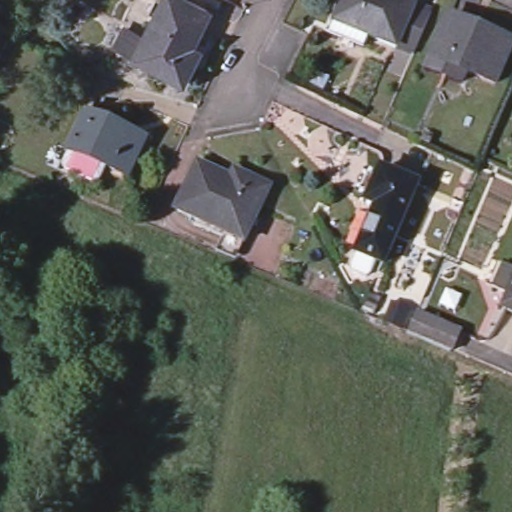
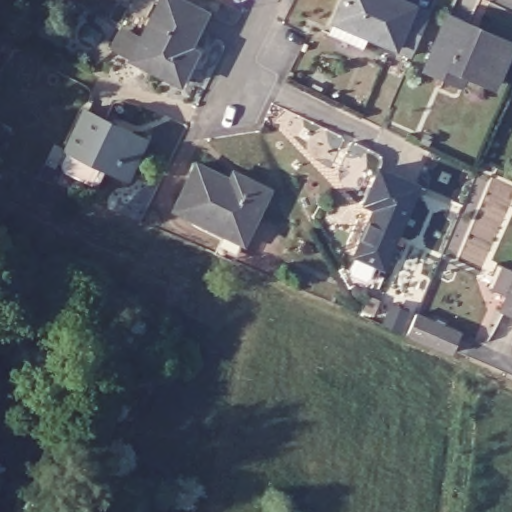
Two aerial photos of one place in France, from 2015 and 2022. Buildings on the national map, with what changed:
unchanged [(177,79),(126,55),(152,0),(186,0),(201,7),(186,41),(193,45),(177,79)]
unchanged [(324,23),(329,11),(334,0),(422,0),(425,1),(407,44),(392,38),(363,25),(358,37),(324,23)]
unchanged [(448,16),(512,43),(495,85),(466,72),(462,84),(426,69),(431,57),(448,16)]
unchanged [(101,181),(71,167),(69,162),(76,147),(74,146),(92,108),(153,136),(136,175),(113,165),(106,180),(101,181)]
unchanged [(246,244),(176,210),(198,164),(233,180),(236,170),(251,177),(273,187),(246,244)]
unchanged [(364,281),(351,275),(349,270),(356,255),(354,255),(375,208),(364,204),(379,169),(417,185),(381,266),(375,264),(369,278),(364,281)]
unchanged [(493,264),(512,274),(512,314),(498,307),(504,295),(483,285),(493,264)]
unchanged [(420,340),(407,335),(409,326),(414,315),(429,320),(459,333),(449,352),(420,340)]

